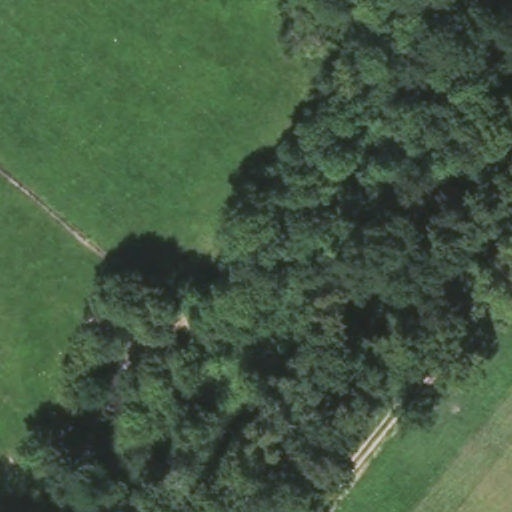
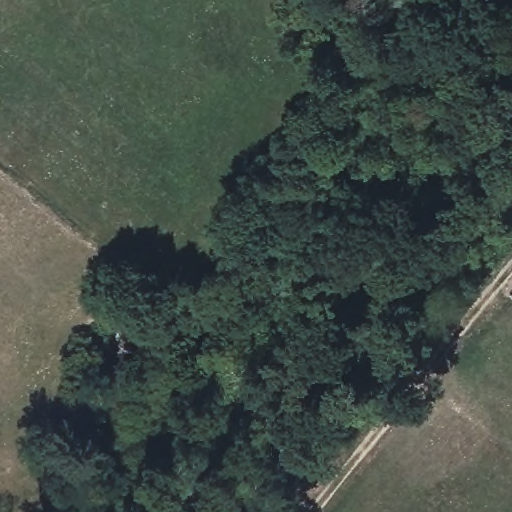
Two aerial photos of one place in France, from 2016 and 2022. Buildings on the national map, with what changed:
unchanged [(512,285),(512,296),(506,292),(512,285)]

